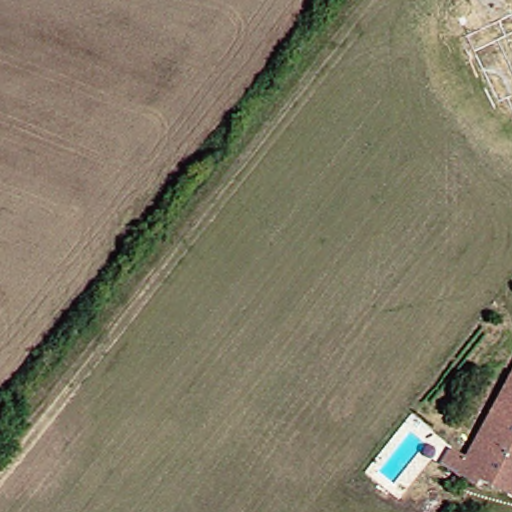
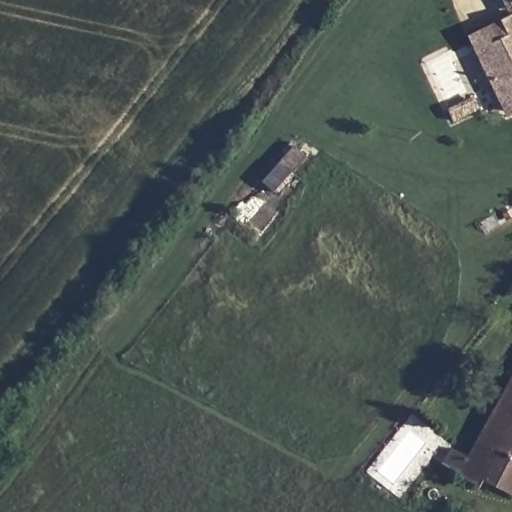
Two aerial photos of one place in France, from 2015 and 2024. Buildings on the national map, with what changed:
new [(512,114),(504,118),(465,37),(512,14),(512,114)]
unchanged [(488,480),(482,485),(451,472),(459,455),(471,460),(512,381),(512,493),(509,491),(488,480)]

